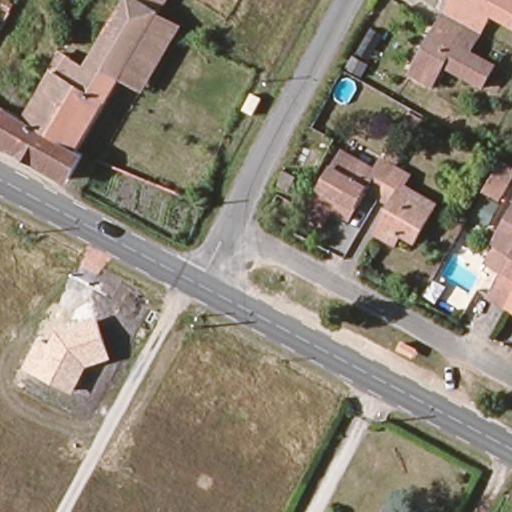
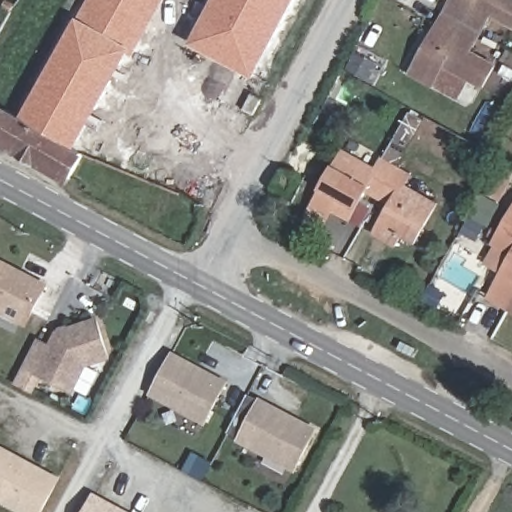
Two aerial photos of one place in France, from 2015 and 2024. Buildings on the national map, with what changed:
new [(79,19),(89,0),(128,0),(130,2),(90,70),(79,65),(67,83),(60,77),(26,127),(20,124),(79,19)]
unchanged [(26,127),(60,77),(67,83),(79,65),(90,70),(130,2),(128,0),(170,0),(159,17),(120,81),(74,155),(26,127)]
new [(256,80),(190,45),(214,0),(299,0),(256,80)]
unchanged [(512,3),(512,34),(490,22),(483,34),(445,13),(452,0),(507,0),(512,3)]
unchanged [(483,34),(472,52),(499,66),(484,89),(448,67),(437,85),(413,70),(445,13),(483,34)]
unchanged [(159,17),(180,29),(140,92),(120,81),(159,17)]
unchanged [(26,127),(74,155),(88,163),(73,186),(0,145),(0,112),(26,127)]
unchanged [(287,163),(298,146),(314,156),(302,171),(290,164),(287,163)]
unchanged [(366,191),(346,218),(330,209),(338,190),(328,185),(347,152),(375,169),(383,154),(405,167),(383,203),(366,191)]
unchanged [(471,215),(501,157),(512,164),(512,179),(489,223),(471,215)]
unchanged [(405,167),(414,172),(406,187),(437,206),(416,241),(402,234),(394,246),(377,237),(392,209),(383,203),(405,167)]
unchanged [(506,253),(492,244),(512,210),(512,304),(509,310),(484,295),(506,253)]
new [(0,313),(0,261),(1,258),(51,284),(28,328),(0,313)]
unchanged [(512,311),(509,310),(512,304),(512,311)]
unchanged [(57,331),(99,318),(112,360),(88,368),(73,395),(24,370),(40,339),(50,344),(57,331)]
new [(207,427),(150,395),(173,352),(231,382),(207,427)]
new [(261,398),(320,428),(297,473),(238,442),(261,398)]
new [(20,512),(0,501),(0,446),(1,444),(62,477),(44,512),(20,512)]
new [(127,512),(83,512),(92,494),(127,512)]

